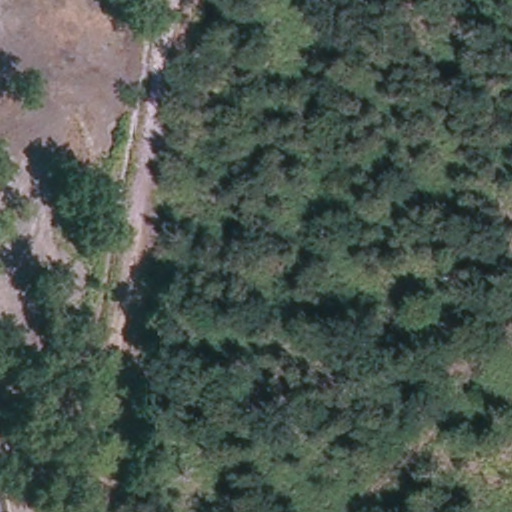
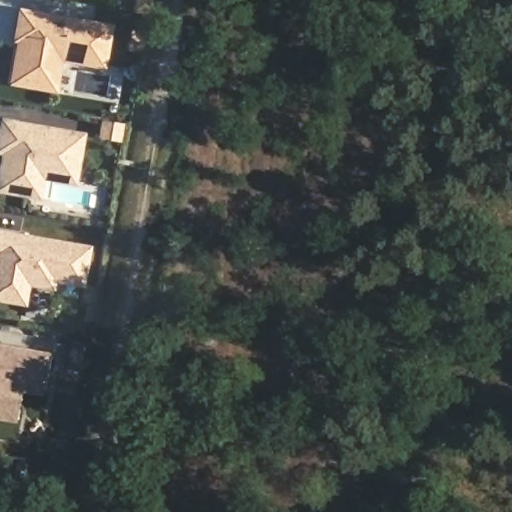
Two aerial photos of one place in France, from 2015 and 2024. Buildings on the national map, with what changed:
new [(55,92),(7,84),(14,42),(10,41),(16,7),(112,22),(104,69),(60,62),(55,92)]
new [(38,200),(0,192),(0,117),(84,132),(75,186),(41,179),(38,200)]
new [(23,306),(0,301),(0,229),(90,244),(81,287),(52,282),(51,290),(26,285),(23,306)]
new [(49,396),(27,392),(22,423),(0,419),(0,343),(57,352),(49,396)]

